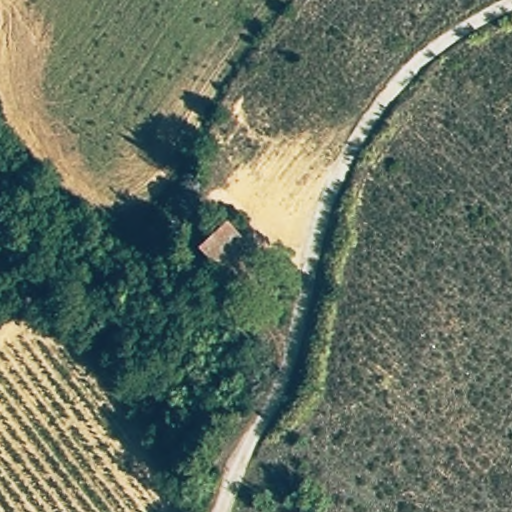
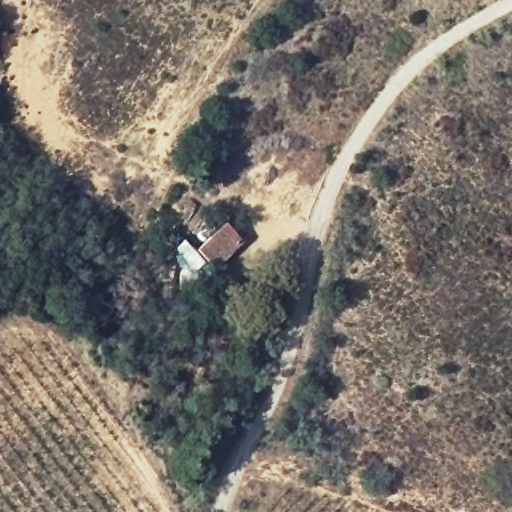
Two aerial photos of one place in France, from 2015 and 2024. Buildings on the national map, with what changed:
unchanged [(225,220),(246,240),(215,271),(195,251),(225,220)]

